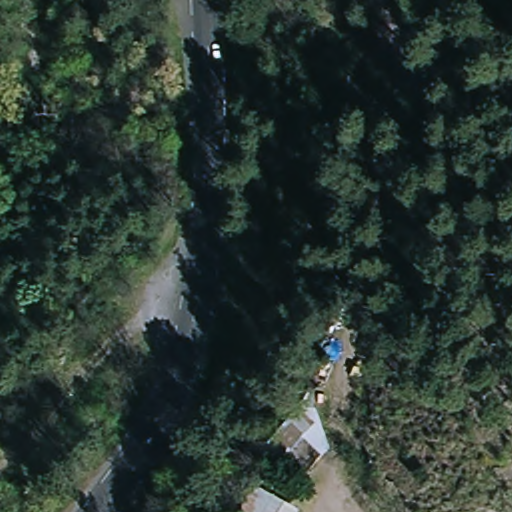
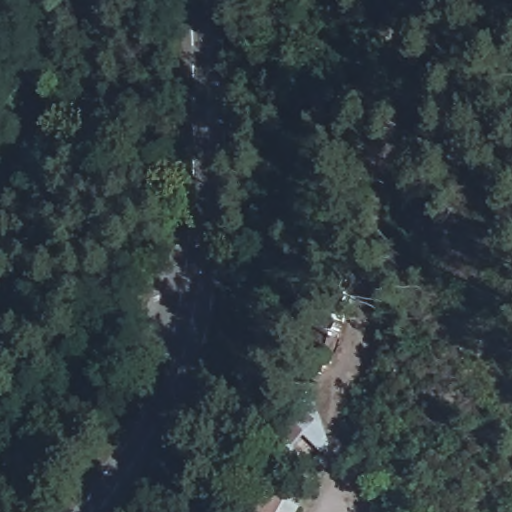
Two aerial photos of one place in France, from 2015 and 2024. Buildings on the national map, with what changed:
unchanged [(242,512),(258,484),(297,508),(295,512),(242,512)]

